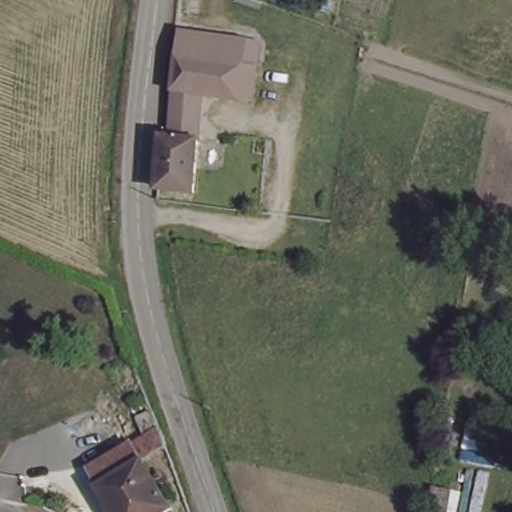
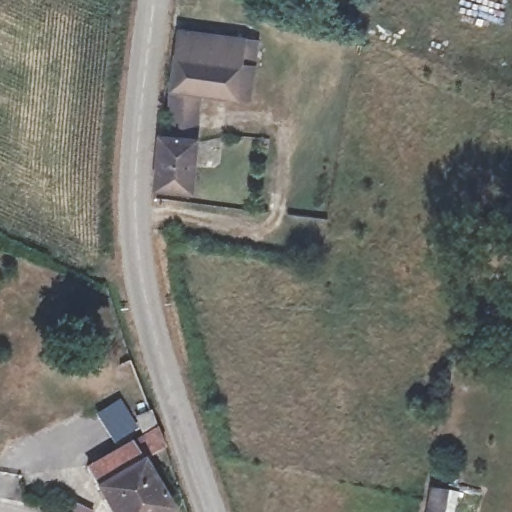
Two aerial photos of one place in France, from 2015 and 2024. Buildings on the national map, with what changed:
unchanged [(253,110),(240,107),(182,96),(184,66),(186,35),(244,46),(243,77),(256,80),(253,110)]
unchanged [(170,194),(157,192),(161,135),(162,118),(198,126),(197,142),(195,198),(170,194)]
unchanged [(149,512),(114,512),(87,470),(133,441),(158,425),(172,445),(146,462),(169,499),(149,512)]
unchanged [(454,500),(457,486),(473,491),(469,512),(452,512),(454,500)]

